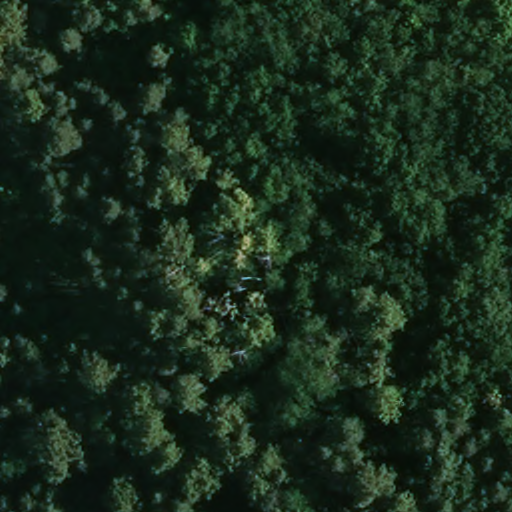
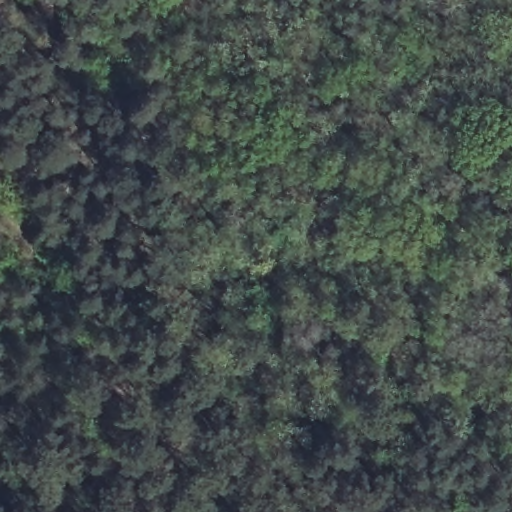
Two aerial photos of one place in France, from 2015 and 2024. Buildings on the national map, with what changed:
[]

